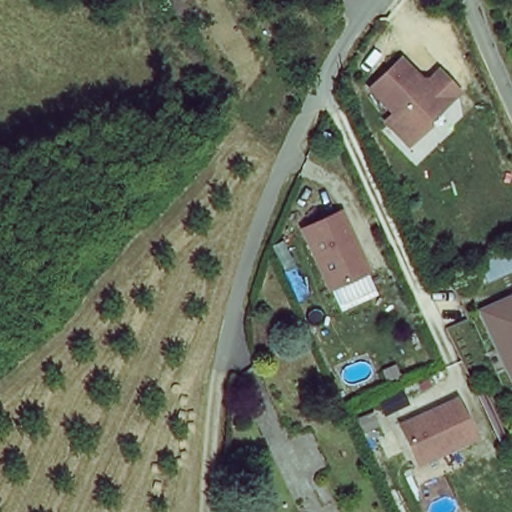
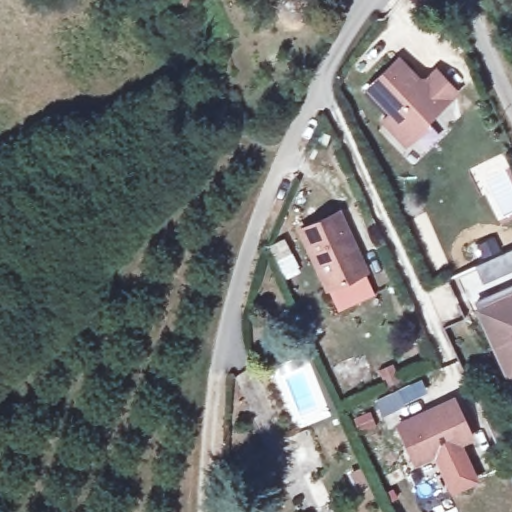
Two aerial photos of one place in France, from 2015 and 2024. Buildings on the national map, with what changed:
unchanged [(416,79),(422,82),(423,80),(433,70),(453,91),(424,120),(424,125),(403,145),(381,122),(389,114),(365,89),(397,57),(417,78),(416,79)]
unchanged [(299,225),(337,207),(362,266),(325,284),(299,225)]
unchanged [(477,310),(498,300),(512,293),(512,371),(505,374),(477,310)]
unchanged [(451,395),(468,433),(412,460),(395,422),(451,395)]
new [(480,480),(450,493),(432,450),(459,437),(480,480)]

